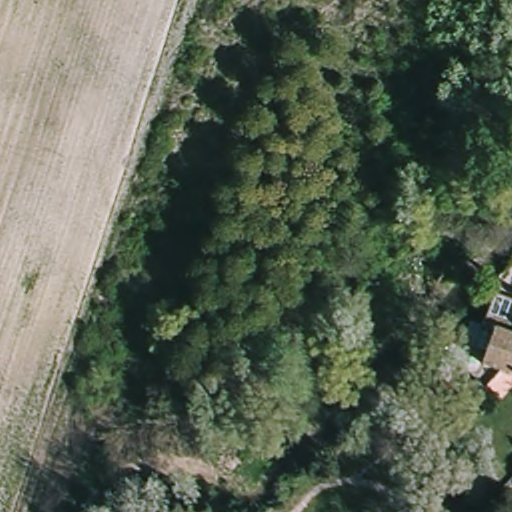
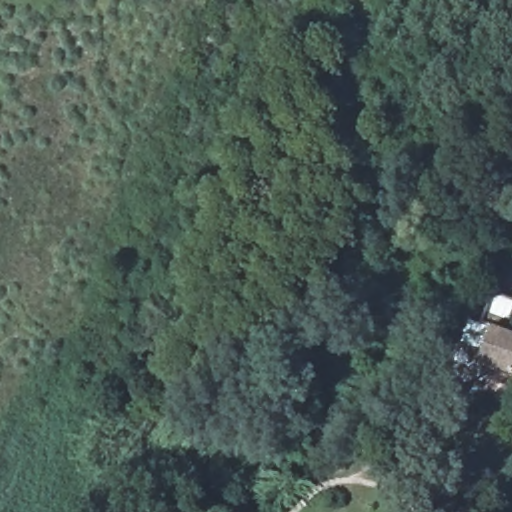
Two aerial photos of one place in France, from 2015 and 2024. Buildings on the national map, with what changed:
unchanged [(476,324),(512,336),(512,373),(463,356),(476,324)]

